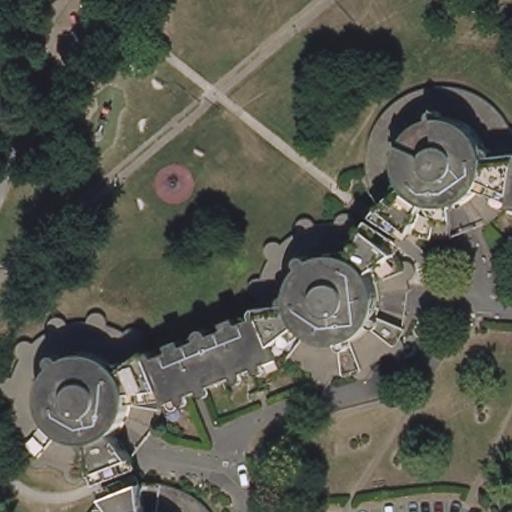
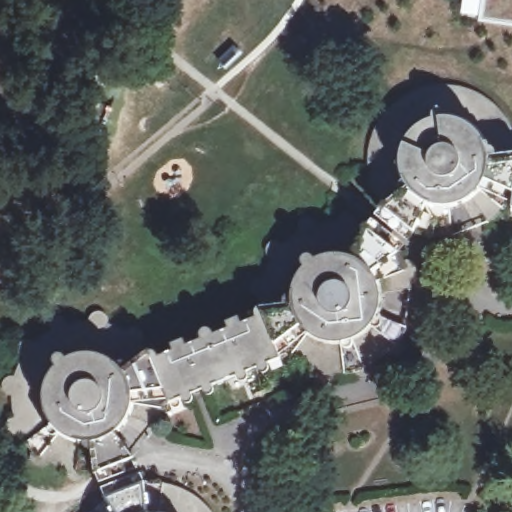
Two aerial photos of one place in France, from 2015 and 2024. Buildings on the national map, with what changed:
new [(480,19),(483,0),(512,0),(512,24),(480,19)]
unchanged [(371,130),(379,113),(385,106),(398,94),(415,85),(426,82),(439,80),(457,81),(473,87),(483,93),(493,100),(501,110),(510,125),(512,132),(512,180),(510,180),(511,198),(503,204),(498,209),(488,217),(478,224),(466,228),(447,231),(429,230),(410,225),(380,200),(374,190),(370,179),(367,166),(366,155),(368,142),(371,130)]
unchanged [(512,180),(512,205),(503,204),(511,198),(510,180),(512,180)]
unchanged [(393,247),(400,260),(402,260),(408,261),(412,265),(412,273),(408,278),(410,296),(408,315),(403,328),(404,330),(406,335),(405,340),(402,345),(398,347),(392,347),(386,354),(376,362),(365,368),(364,373),(360,378),(355,380),(350,378),(346,375),(339,376),(329,377),(327,380),(322,383),(317,383),(314,381),(310,377),(309,375),(293,369),(283,363),(273,355),(158,400),(155,418),(148,435),(141,445),(127,458),(117,465),(106,470),(89,474),(75,475),(74,476),(70,478),(64,479),(59,475),(57,471),(46,467),(37,463),(29,463),(24,460),(22,455),(22,450),(13,437),(8,436),(3,433),(1,428),(0,425),(0,421),(3,415),(1,403),(1,395),(0,395),(0,376),(3,375),(5,365),(8,357),(7,350),(9,344),(15,340),(19,339),(25,333),(40,323),(40,321),(42,317),(44,315),(49,312),(54,312),(59,314),(62,317),(70,315),(85,315),(91,310),(96,310),(101,312),(104,318),(112,320),(120,325),(127,325),(132,326),(137,332),(137,338),(141,346),(147,343),(149,348),(166,342),(164,337),(178,332),(180,336),(192,332),(193,326),(197,323),(203,323),(208,326),(244,311),(245,306),(248,303),(252,302),(251,295),(248,293),(244,290),(242,284),(243,279),(246,276),(250,273),(256,273),(261,258),(259,256),(257,250),(259,244),(264,240),(268,239),(273,240),(291,225),(291,221),(294,217),(299,214),(304,214),(308,215),(311,219),(323,216),(332,215),(334,212),(339,210),(346,210),(351,214),(353,219),(363,223),(393,247)]
unchanged [(116,491),(155,480),(166,480),(175,481),(184,485),(197,491),(211,502),(218,512),(116,512),(111,495),(116,491)]
unchanged [(111,495),(116,512),(92,512),(98,505),(111,495)]

